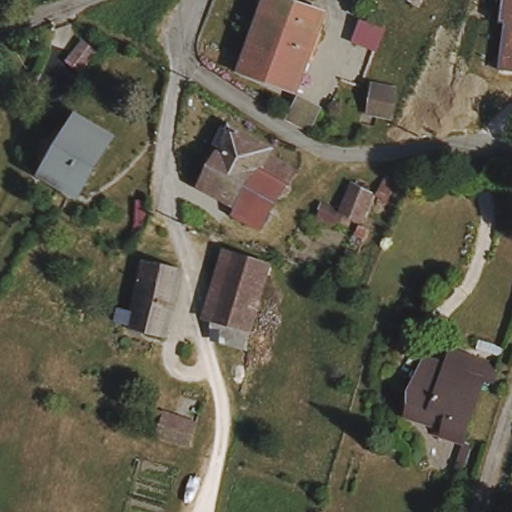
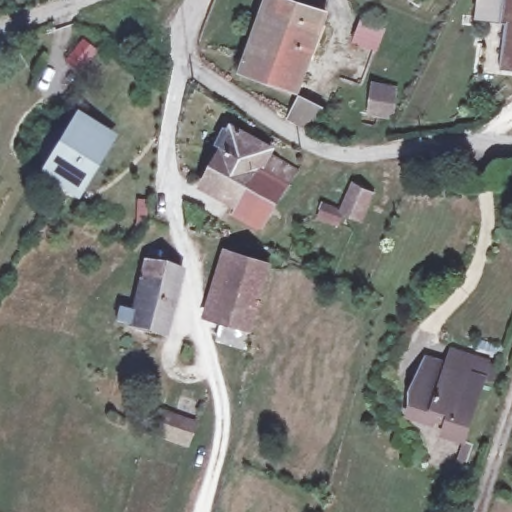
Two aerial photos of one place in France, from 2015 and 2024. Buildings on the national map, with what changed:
unchanged [(292,86),(243,70),(265,0),(277,0),(315,12),(292,86)]
unchanged [(512,0),(512,70),(500,68),(506,24),(501,24),(505,0),(512,0)]
unchanged [(92,45),(77,70),(62,61),(76,36),(92,45)]
unchanged [(395,89),(384,110),(365,99),(375,76),(395,89)]
unchanged [(306,125),(288,115),(299,96),(318,108),(309,127),(306,125)]
unchanged [(235,124),(296,161),(285,181),(281,179),(275,175),(223,143),(235,124)]
unchanged [(106,144),(75,191),(48,173),(80,125),(106,144)]
unchanged [(275,175),(257,205),(264,209),(256,222),(235,209),(240,200),(201,177),(223,143),(275,175)]
unchanged [(373,179),(356,219),(340,218),(336,227),(316,222),(317,200),(340,205),(351,179),(373,179)]
unchanged [(232,316),(235,299),(217,294),(227,250),(269,265),(250,322),(232,316)]
unchanged [(165,333),(137,322),(122,320),(125,304),(138,306),(151,256),(182,267),(165,333)]
unchanged [(235,299),(232,316),(250,322),(255,323),(249,348),(207,334),(217,294),(235,299)]
unchanged [(438,442),(441,434),(401,420),(407,403),(403,393),(411,387),(415,376),(420,363),(440,370),(447,354),(483,368),(477,384),(456,449),(438,442)]
unchanged [(185,443),(155,431),(163,409),(193,421),(185,443)]

